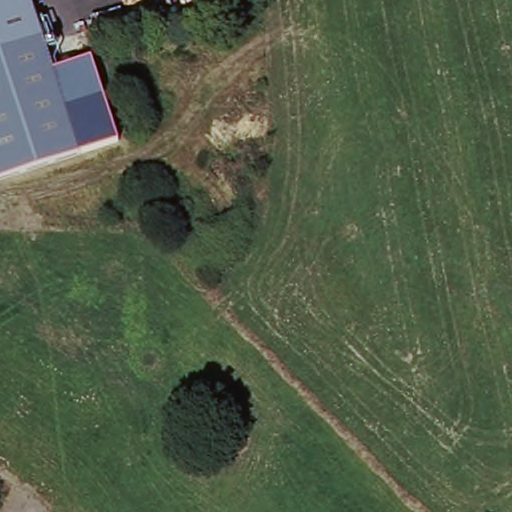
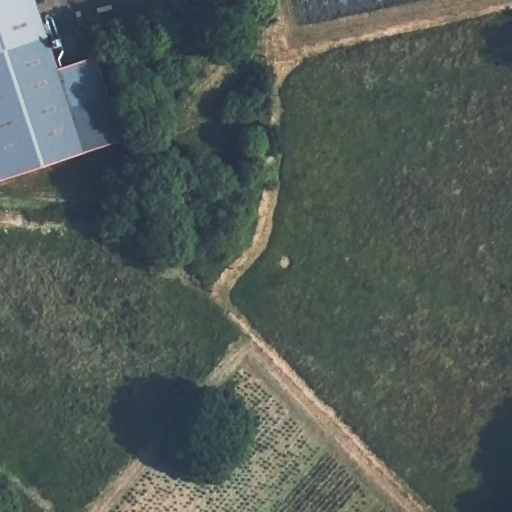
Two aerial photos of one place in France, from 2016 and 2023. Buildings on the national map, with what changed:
unchanged [(48,22),(51,32),(44,35),(83,152),(0,179),(0,0),(32,0),(40,24),(48,22)]
unchanged [(95,57),(122,141),(83,152),(55,70),(95,57)]

